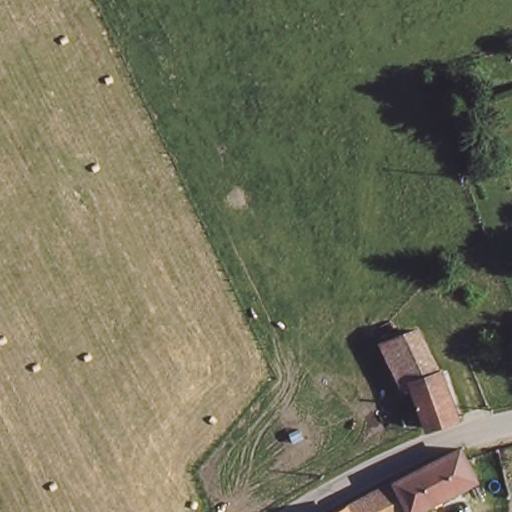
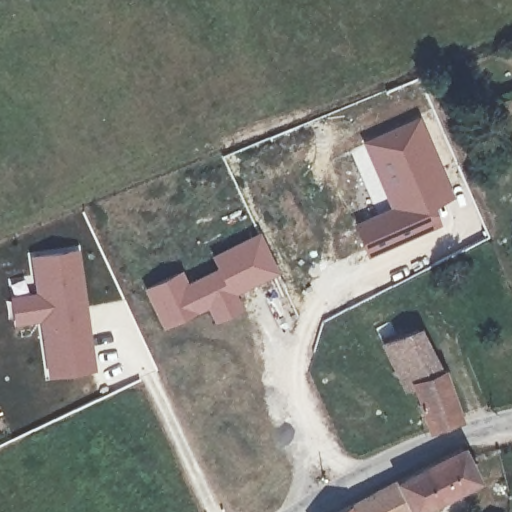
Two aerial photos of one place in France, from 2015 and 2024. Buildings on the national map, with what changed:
new [(433,206),(442,226),(367,258),(353,223),(389,207),(362,142),(419,117),(454,197),(433,206)]
new [(243,286),(239,276),(227,283),(237,307),(214,317),(207,302),(162,323),(146,287),(179,271),(185,285),(220,268),(214,255),(260,234),(276,270),(243,286)]
new [(48,377),(38,320),(14,323),(10,295),(35,292),(31,255),(78,248),(96,368),(48,377)]
unchanged [(414,383),(407,385),(385,342),(412,332),(416,331),(445,370),(449,381),(460,416),(454,418),(444,422),(430,426),(414,383)]
unchanged [(460,452),(465,463),(475,483),(417,512),(350,512),(396,486),(460,452)]

